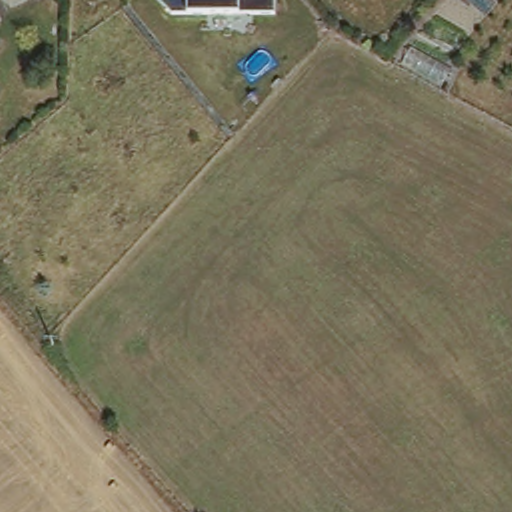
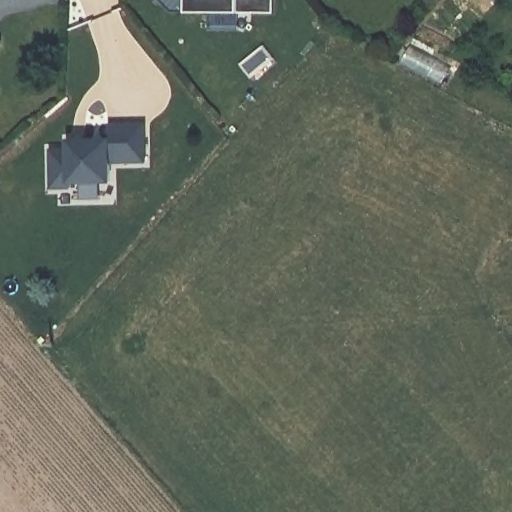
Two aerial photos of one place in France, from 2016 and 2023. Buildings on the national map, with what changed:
unchanged [(275,14),(239,13),(188,13),(174,13),(160,0),(275,0),(275,14)]
new [(70,154),(70,145),(110,144),(110,129),(146,128),(147,166),(112,167),(112,186),(72,187),(72,192),(53,192),(52,155),(70,154)]

